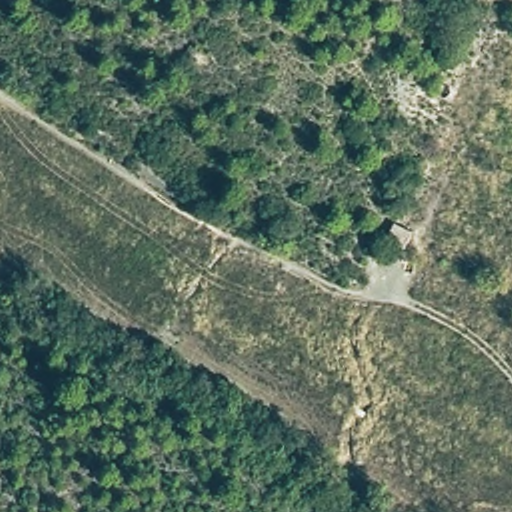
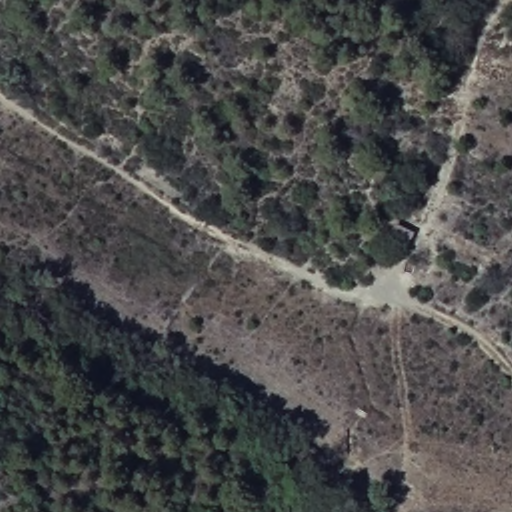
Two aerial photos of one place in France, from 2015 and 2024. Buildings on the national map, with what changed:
unchanged [(411,224),(405,239),(385,233),(391,214),(411,224)]

